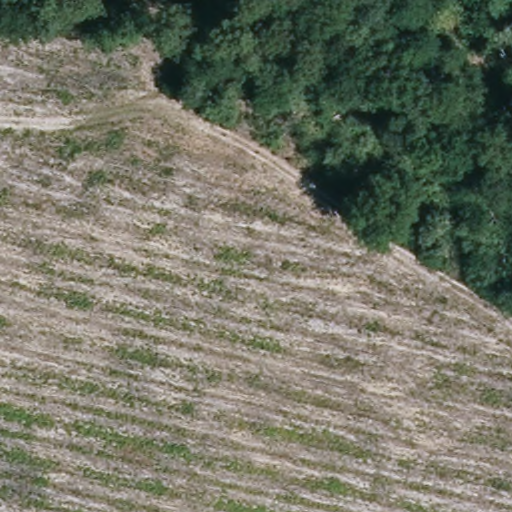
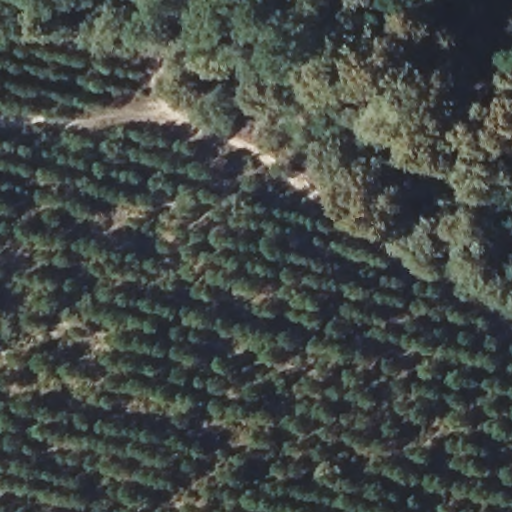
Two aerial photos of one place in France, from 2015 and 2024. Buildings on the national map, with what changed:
[]

